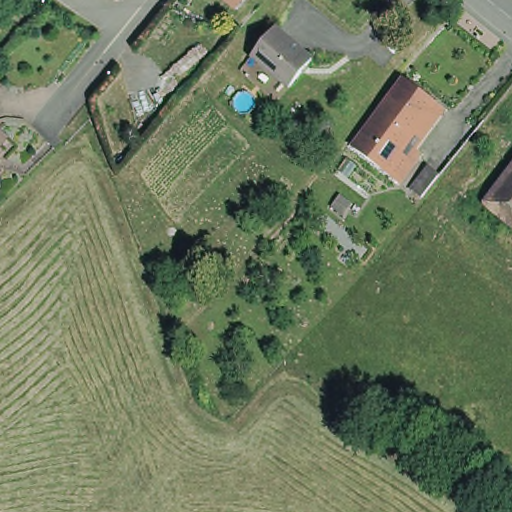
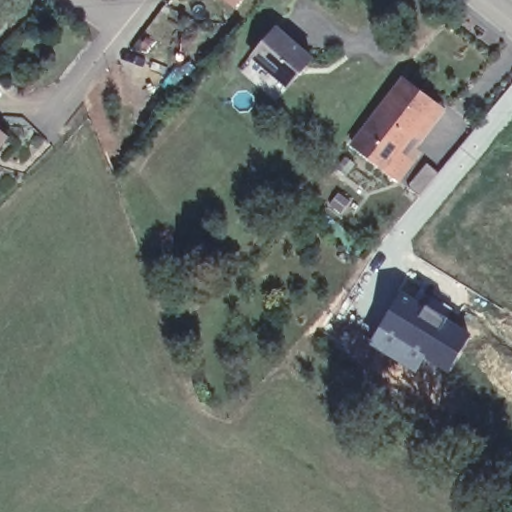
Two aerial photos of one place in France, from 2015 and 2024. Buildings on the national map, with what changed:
unchanged [(311,64),(289,90),(252,59),(275,33),(311,64)]
unchanged [(393,175),(379,164),(346,139),(397,73),(430,98),(439,105),(406,146),(411,150),(393,175)]
unchanged [(0,132),(0,123),(5,126),(0,132)]
demolished [(488,196),(512,165),(512,215),(488,196)]
unchanged [(416,197),(414,199),(403,191),(421,169),(432,177),(416,197)]
unchanged [(340,211),(330,204),(338,192),(347,200),(340,211)]
new [(470,335),(449,376),(421,358),(412,373),(365,347),(398,291),(470,335)]

